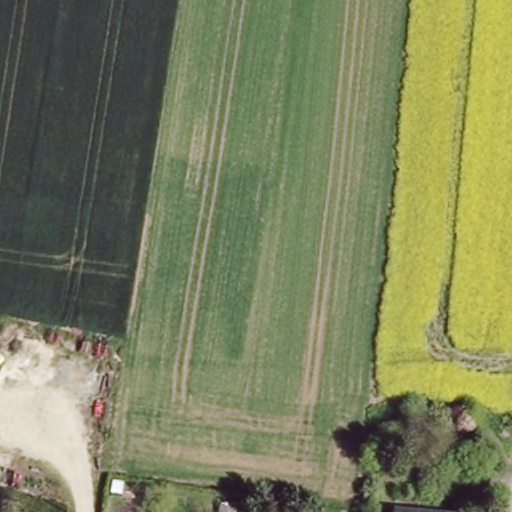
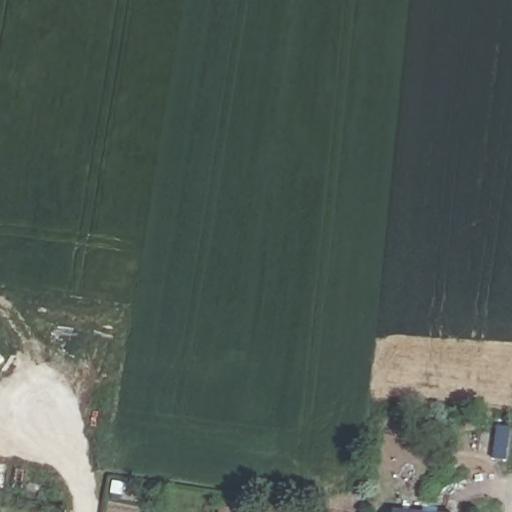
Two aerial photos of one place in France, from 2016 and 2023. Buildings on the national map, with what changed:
unchanged [(398,512),(393,512),(393,511),(398,512)]

